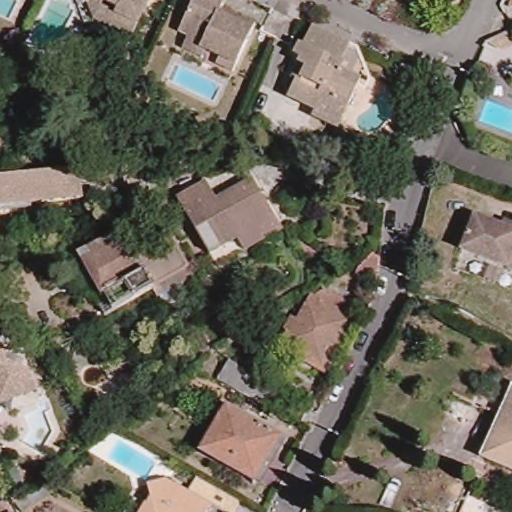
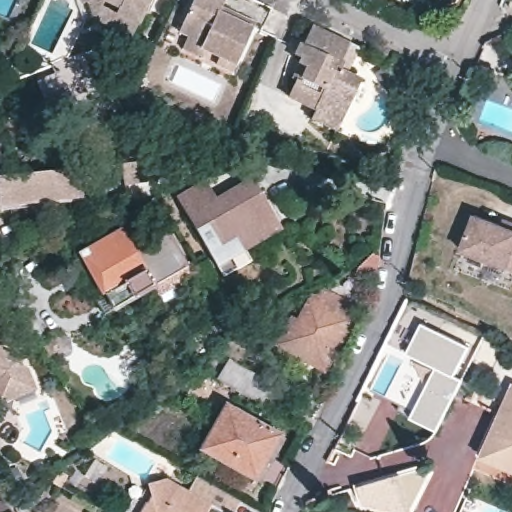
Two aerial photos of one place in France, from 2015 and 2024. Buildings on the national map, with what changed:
unchanged [(82,0),(96,0),(83,4),(82,0)]
unchanged [(110,26),(119,7),(104,0),(146,0),(130,34),(110,26)]
unchanged [(220,63),(222,57),(201,47),(204,42),(181,32),(196,0),(225,0),(222,6),(242,16),(258,24),(236,70),(220,63)]
unchanged [(316,105),(316,108),(290,96),(298,78),(303,81),(309,67),(301,64),(303,59),(296,56),(302,43),(304,42),(311,26),(349,44),(341,62),(343,63),(340,70),(360,80),(349,104),(343,117),(316,105)]
unchanged [(87,171),(126,166),(148,163),(151,179),(128,181),(88,187),(83,188),(83,201),(8,209),(0,210),(0,181),(15,179),(87,171)]
unchanged [(209,167),(219,184),(254,163),(263,176),(267,183),(277,201),(213,239),(181,184),(209,167)]
unchanged [(213,239),(277,201),(284,213),(220,250),(213,239)]
unchanged [(509,272),(463,255),(476,220),(496,227),(499,222),(512,227),(512,273),(509,272)]
unchanged [(102,297),(94,294),(75,258),(91,250),(129,230),(141,253),(177,236),(194,268),(122,307),(110,313),(102,297)]
unchanged [(381,255),(377,276),(361,266),(379,255),(381,255)]
unchanged [(285,349),(298,325),(303,327),(315,304),(319,305),(324,298),(334,303),(336,299),(358,310),(353,322),(356,324),(329,374),(285,349)]
new [(421,321),(471,345),(456,376),(463,379),(437,432),(409,417),(433,368),(404,353),(421,321)]
unchanged [(263,401),(219,376),(229,358),(273,382),(263,401)]
unchanged [(35,390),(0,406),(0,376),(25,364),(35,390)]
unchanged [(261,481),(206,450),(232,404),(286,435),(261,481)]
unchanged [(499,418),(509,421),(512,412),(512,468),(483,455),(499,418)]
new [(421,467),(423,470),(428,474),(412,512),(389,512),(363,506),(355,485),(421,467)]
unchanged [(146,504),(148,503),(150,500),(146,484),(165,476),(189,489),(196,475),(241,499),(233,512),(230,512),(211,501),(205,512),(141,512),(146,504)]
unchanged [(15,505),(40,487),(46,494),(23,512),(20,512),(15,505)]
unchanged [(0,502),(11,498),(17,512),(0,512),(0,502)]

